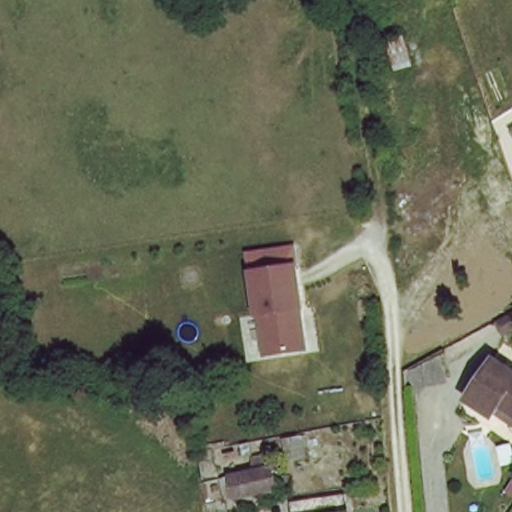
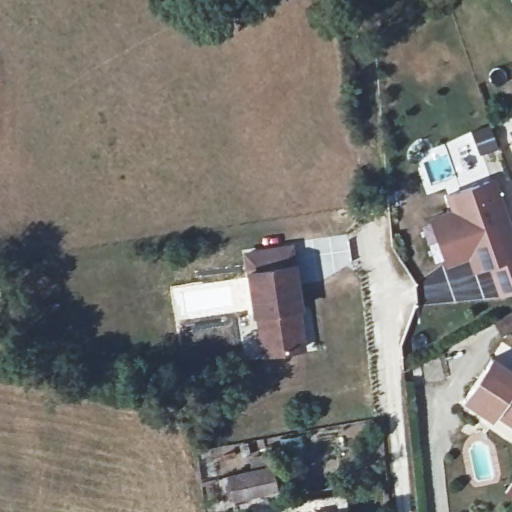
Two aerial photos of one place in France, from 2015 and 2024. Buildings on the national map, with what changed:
demolished [(412,28),(419,61),(389,66),(385,35),(412,28)]
unchanged [(510,131),(512,130),(512,136),(510,131)]
new [(488,267),(472,273),(468,259),(446,267),(428,217),(450,209),(446,194),(495,177),(512,224),(512,290),(498,295),(488,267)]
unchanged [(296,306),(304,347),(268,353),(260,313),(258,313),(250,270),(246,251),(293,243),(295,263),(302,305),(296,306)]
unchanged [(510,335),(502,319),(512,314),(512,334),(510,335)]
unchanged [(449,381),(408,392),(405,368),(441,349),(449,381)]
unchanged [(507,411),(499,420),(469,400),(498,358),(512,367),(512,414),(507,411)]
unchanged [(230,469),(269,462),(273,479),(234,487),(230,469)]
unchanged [(298,501),(346,493),(349,512),(300,512),(298,501)]

